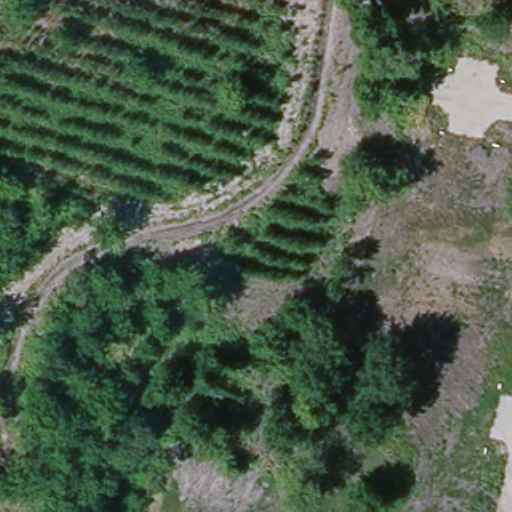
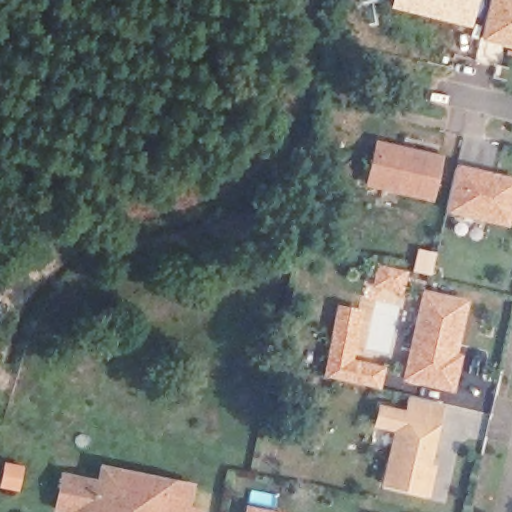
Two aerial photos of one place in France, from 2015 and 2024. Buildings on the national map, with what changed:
new [(394,5),(395,0),(419,0),(408,8),(394,5)]
new [(433,15),(426,0),(474,0),(468,23),(433,15)]
new [(482,40),(491,0),(512,0),(512,47),(482,40)]
new [(377,145),(439,159),(429,201),(367,186),(377,145)]
new [(512,177),(512,217),(509,228),(445,213),(457,165),(512,177)]
new [(375,264),(408,272),(401,297),(371,289),(375,264)]
new [(469,301),(458,353),(462,354),(454,393),(402,381),(423,290),(469,301)]
new [(336,304),(364,311),(362,325),(365,326),(364,330),(367,331),(365,338),(361,337),(356,357),(385,365),(379,390),(322,377),(336,304)]
new [(374,426),(379,404),(405,410),(408,397),(446,405),(433,463),(438,464),(430,497),(381,487),(393,431),(374,426)]
unchanged [(62,512),(70,478),(106,486),(109,471),(198,491),(194,512),(65,512),(62,512)]
new [(278,512),(245,512),(246,506),(278,512)]

